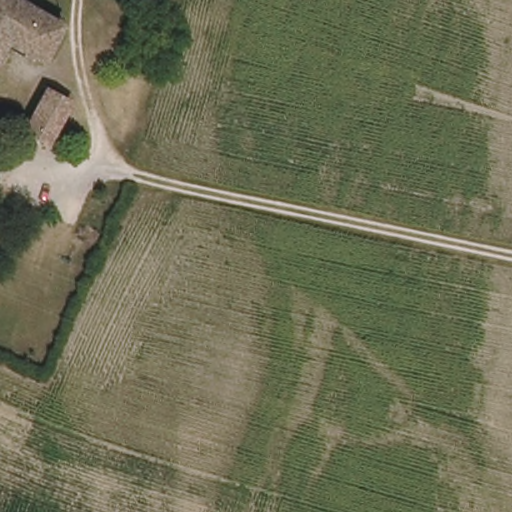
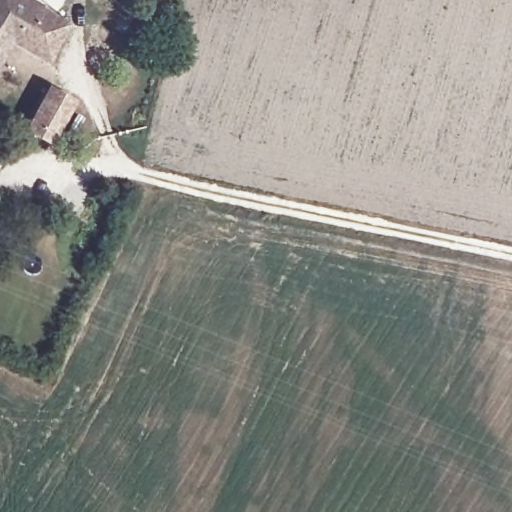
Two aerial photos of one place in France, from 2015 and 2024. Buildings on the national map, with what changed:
unchanged [(19,0),(65,28),(47,60),(12,38),(0,58),(0,0),(19,0)]
unchanged [(25,129),(47,95),(70,108),(49,142),(25,129)]

